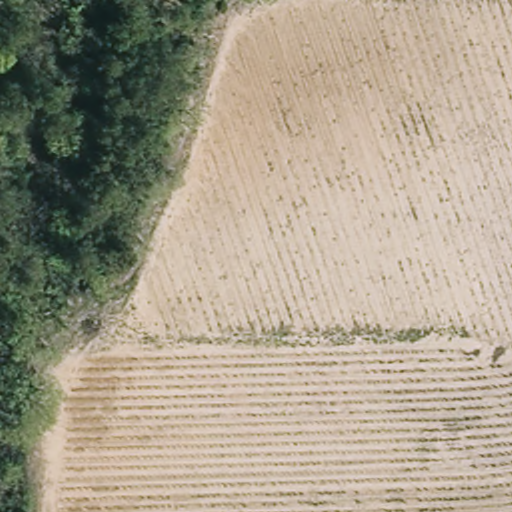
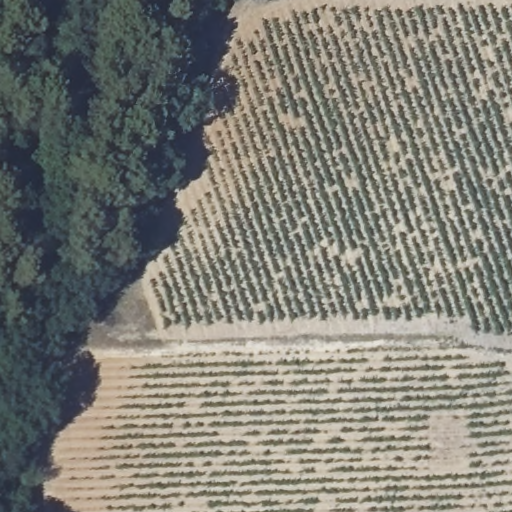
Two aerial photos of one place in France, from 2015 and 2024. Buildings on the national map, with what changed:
[]

